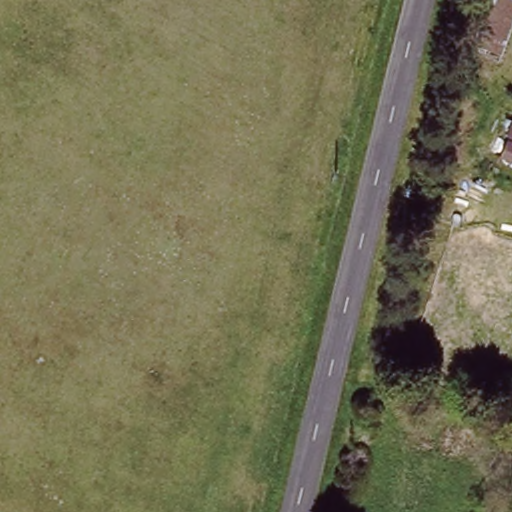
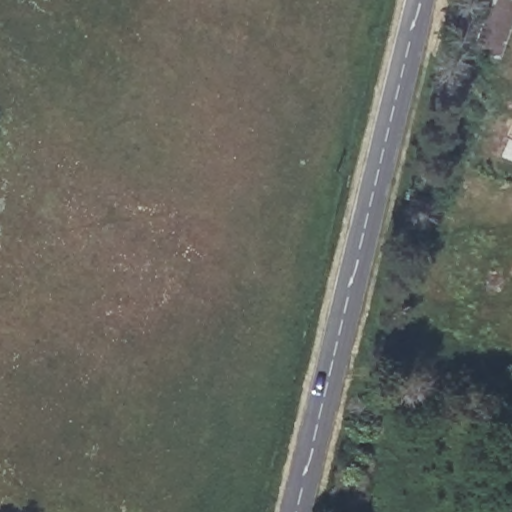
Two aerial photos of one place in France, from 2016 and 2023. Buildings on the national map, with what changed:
unchanged [(476,33),(491,0),(512,0),(512,38),(508,47),(476,33)]

